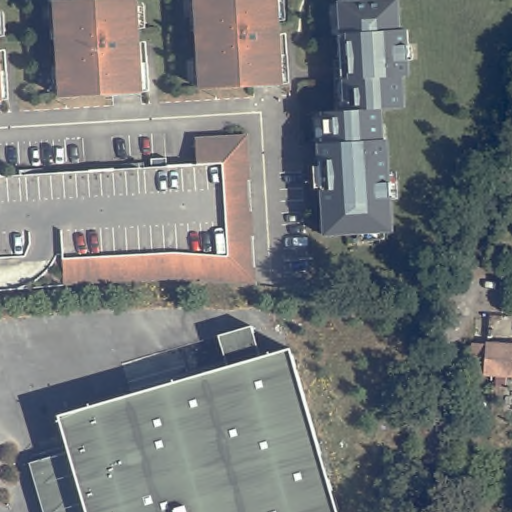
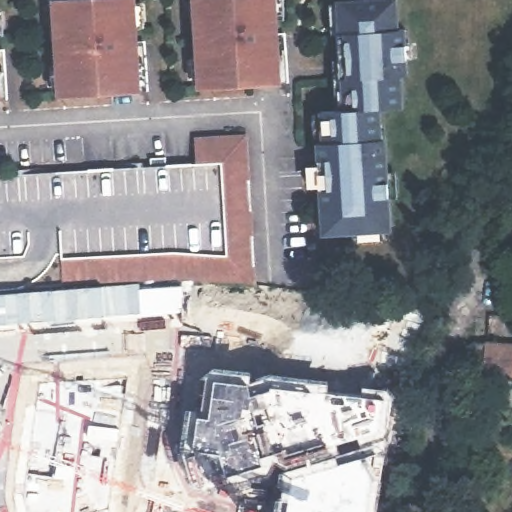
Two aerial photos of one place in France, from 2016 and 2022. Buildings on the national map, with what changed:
unchanged [(148,90),(59,96),(58,74),(63,73),(59,20),(54,21),(53,0),(102,0),(102,1),(110,0),(134,0),(135,29),(133,29),(134,41),(145,40),(145,55),(148,90)]
unchanged [(288,81),(200,86),(198,64),(203,64),(200,11),(195,11),(194,0),(275,0),(276,20),(274,20),(274,31),(285,31),(286,46),(288,81)]
unchanged [(405,26),(407,56),(403,57),(404,73),(401,73),(403,104),(380,106),(383,153),(387,152),(392,228),(323,232),(317,141),(323,141),(321,110),(344,108),(342,76),(340,76),(337,31),(339,31),(337,0),(396,0),(398,26),(405,26)]
unchanged [(7,99),(0,100),(0,49),(4,49),(5,64),(7,99)]
unchanged [(150,158),(165,157),(166,166),(195,164),(194,141),(219,140),(246,138),(254,257),(256,286),(217,283),(196,281),(187,281),(174,281),(137,282),(110,284),(89,285),(64,286),(62,258),(62,254),(0,258),(0,176),(150,166),(150,158)]
demolished [(423,314),(417,357),(397,354),(402,311),(423,314)]
demolished [(27,460),(66,450),(57,414),(226,365),(218,334),(252,326),(261,356),(289,347),(335,512),(42,512),(27,460)]
unchanged [(471,373),(473,343),(474,342),(512,344),(512,375),(471,373)]

